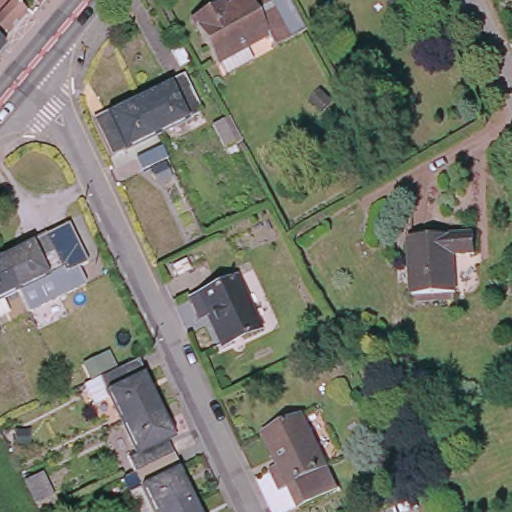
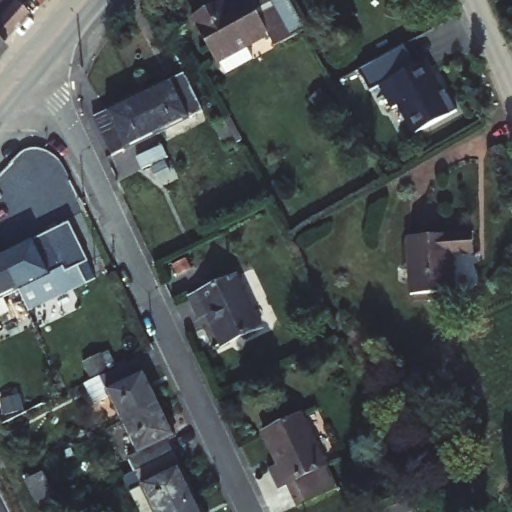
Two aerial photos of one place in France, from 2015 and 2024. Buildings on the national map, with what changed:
unchanged [(0,65),(0,0),(10,0),(31,19),(4,49),(9,55),(0,65)]
unchanged [(40,4),(37,0),(44,0),(40,4)]
unchanged [(275,47),(269,35),(217,63),(194,19),(214,9),(222,4),(225,10),(244,0),(290,0),(306,30),(275,47)]
new [(399,107),(390,111),(379,87),(371,91),(360,69),(404,45),(415,67),(427,59),(454,110),(413,134),(399,107)]
unchanged [(185,76),(203,113),(157,135),(155,132),(139,97),(185,76)]
unchanged [(112,156),(95,118),(139,97),(155,132),(157,135),(112,156)]
unchanged [(214,126),(224,121),(229,119),(241,142),(237,144),(226,149),(214,126)]
unchanged [(169,159),(142,170),(137,159),(163,148),(169,159)]
unchanged [(170,179),(157,185),(151,170),(164,165),(170,179)]
unchanged [(56,234),(56,233),(55,233),(55,232),(55,230),(55,229),(56,228),(57,228),(57,227),(58,227),(59,226),(60,226),(60,227),(61,227),(62,227),(62,228),(63,228),(63,229),(64,229),(64,230),(64,231),(64,232),(64,233),(63,234),(62,234),(62,235),(61,235),(60,235),(60,236),(59,236),(59,235),(58,235),(57,235),(57,234),(56,234)]
unchanged [(412,298),(412,292),(411,292),(409,234),(472,231),(474,250),(452,251),(454,290),(452,290),(453,297),(412,298)]
unchanged [(54,236),(60,251),(82,241),(94,264),(84,268),(91,285),(34,312),(25,291),(9,257),(54,236)]
unchanged [(25,291),(7,299),(14,313),(0,319),(0,258),(2,257),(4,259),(9,257),(25,291)]
unchanged [(221,346),(207,316),(198,320),(189,299),(237,276),(242,286),(240,287),(260,330),(242,338),(242,337),(221,346)]
unchanged [(115,402),(99,409),(90,390),(118,377),(144,365),(165,410),(127,428),(115,402)]
unchanged [(134,463),(142,459),(127,428),(165,410),(180,442),(172,445),(179,459),(140,477),(134,463)]
unchanged [(342,491),(302,509),(291,486),(282,490),(273,471),(282,467),(267,436),(287,426),(287,425),(305,416),(325,456),(327,455),(332,466),(330,467),(342,491)]
unchanged [(200,505),(184,512),(142,512),(129,483),(140,477),(179,459),(200,505)]
unchanged [(41,475),(52,497),(36,504),(27,482),(41,475)]
unchanged [(204,512),(184,512),(200,505),(204,512)]

